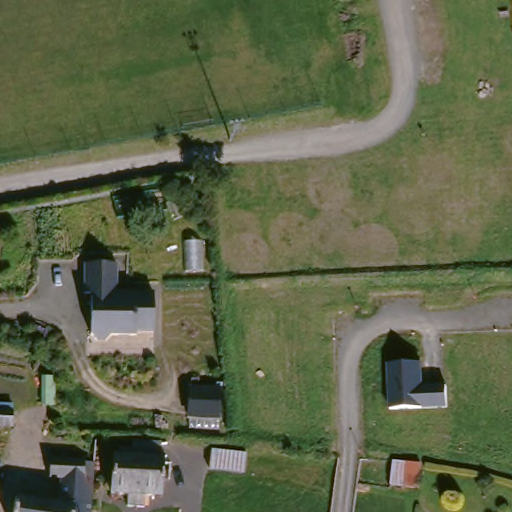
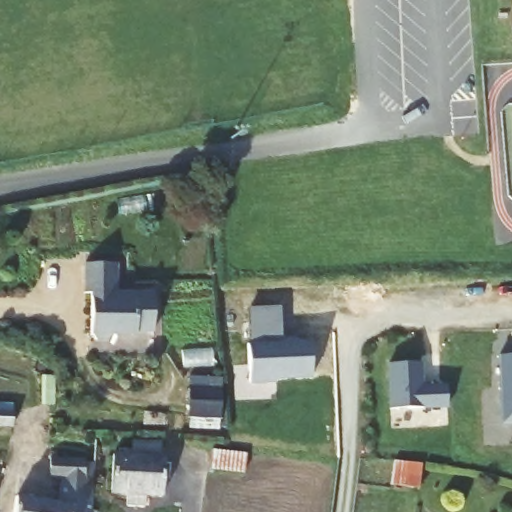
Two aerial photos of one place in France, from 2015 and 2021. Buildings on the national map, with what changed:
unchanged [(120,258),(119,287),(159,287),(158,326),(140,326),(140,329),(117,329),(111,335),(99,335),(94,328),(94,287),(88,287),(88,257),(120,258)]
new [(280,307),(282,336),(296,336),(297,340),(310,340),(312,379),(276,381),(276,383),(252,383),(248,308),(280,307)]
unchanged [(422,361),(424,384),(446,384),(448,408),(389,409),(387,363),(422,361)]
unchanged [(185,387),(216,388),(214,418),(184,417),(185,387)]
unchanged [(9,427),(0,426),(0,411),(9,412),(9,427)]
unchanged [(105,502),(108,460),(114,460),(125,461),(128,461),(129,456),(136,456),(136,447),(153,448),(152,463),(156,464),(153,506),(137,505),(136,512),(118,512),(119,503),(105,502)]
unchanged [(88,484),(90,512),(13,512),(15,502),(56,508),(58,483),(48,483),(47,464),(47,462),(82,464),(82,484),(88,484)]
unchanged [(409,467),(406,493),(392,491),(394,466),(409,467)]

